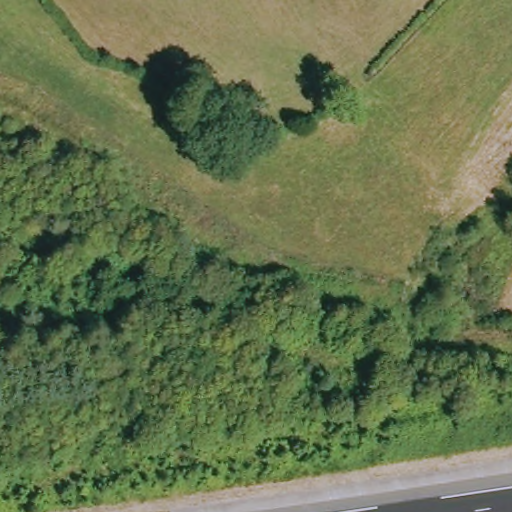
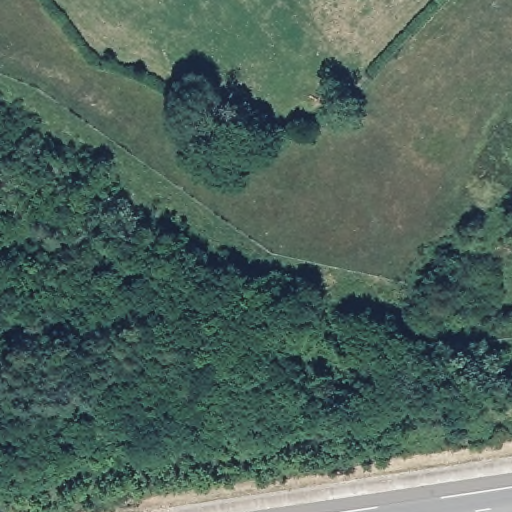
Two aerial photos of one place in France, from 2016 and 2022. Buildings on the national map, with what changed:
[]

